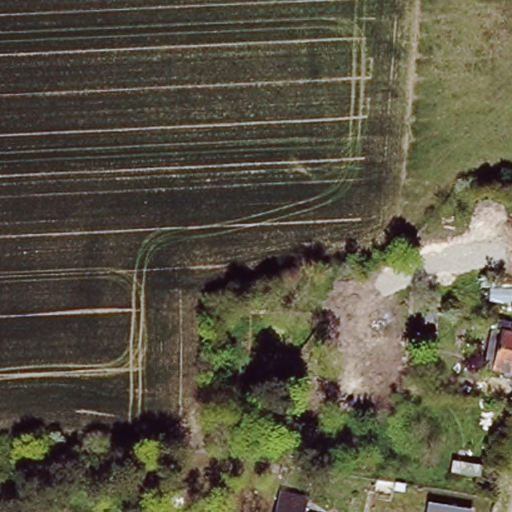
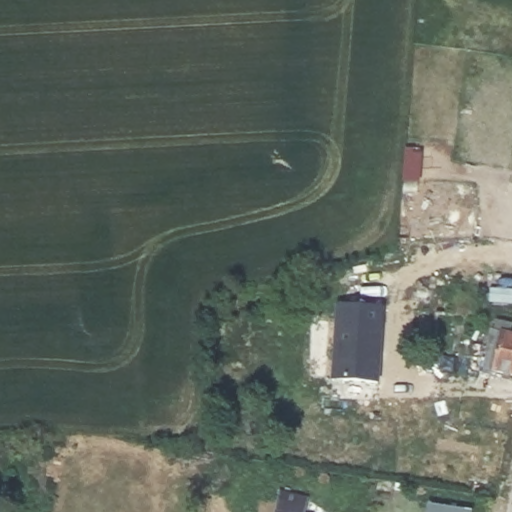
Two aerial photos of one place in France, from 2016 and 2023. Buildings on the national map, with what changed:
new [(339,306),(383,309),(380,383),(332,380),(339,306)]
demolished [(425,327),(429,314),(445,318),(442,331),(425,327)]
unchanged [(502,334),(512,337),(512,375),(494,371),(502,334)]
unchanged [(310,503),(307,512),(274,512),(278,496),(310,503)]
unchanged [(473,512),(426,512),(428,504),(474,511),(473,512)]

